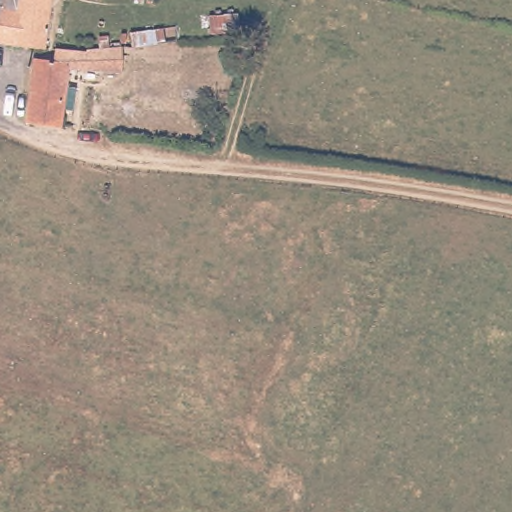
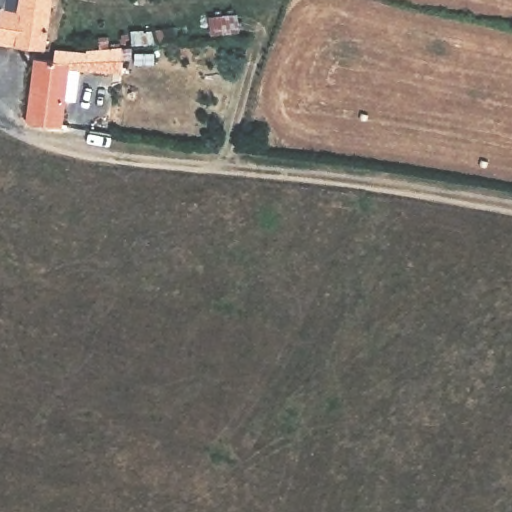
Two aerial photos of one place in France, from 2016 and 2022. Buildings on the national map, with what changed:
unchanged [(0,16),(0,0),(3,0),(0,16)]
unchanged [(0,38),(0,16),(3,0),(51,0),(43,45),(0,38)]
unchanged [(241,29),(213,30),(212,13),(240,11),(241,29)]
unchanged [(157,53),(136,55),(133,30),(155,24),(157,53)]
unchanged [(80,108),(63,104),(61,119),(27,114),(28,51),(49,55),(54,46),(122,40),(120,64),(100,62),(96,72),(69,71),(68,77),(86,81),(80,108)]

